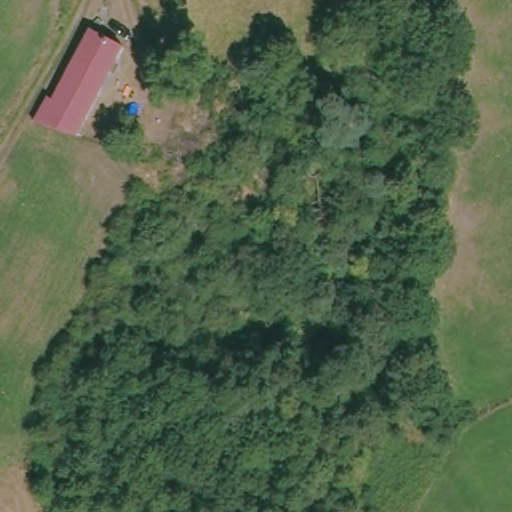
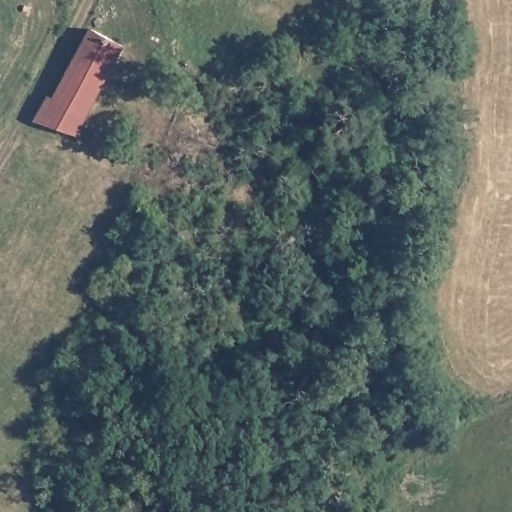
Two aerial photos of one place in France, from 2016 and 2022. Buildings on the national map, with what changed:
unchanged [(90,30),(118,45),(82,116),(72,137),(36,117),(48,97),(54,101),(90,30)]

